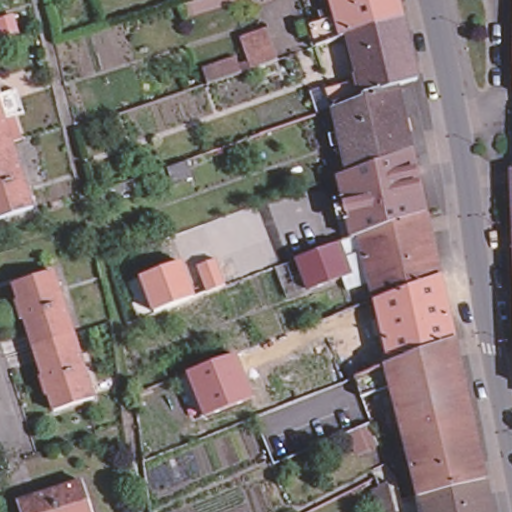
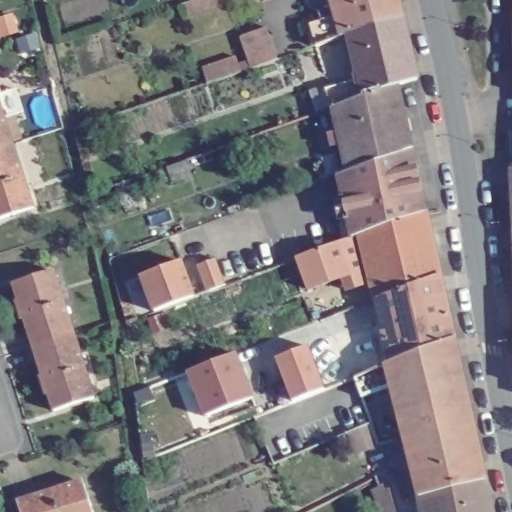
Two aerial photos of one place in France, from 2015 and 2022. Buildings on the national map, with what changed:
unchanged [(289,10),(301,6),(300,0),(395,0),(401,18),(376,27),(349,36),(331,42),(315,47),(312,37),(299,41),(289,10)]
unchanged [(369,205),(366,191),(344,196),(339,177),(328,180),(324,168),(345,161),(336,114),(334,110),(317,115),(309,93),(326,87),(324,85),(359,76),(349,36),(376,27),(401,18),(416,80),(413,82),(397,86),(412,150),(426,212),(441,278),(408,291),(376,303),(359,237),(354,239),(347,211),(369,205)]
unchanged [(276,70),(249,80),(238,47),(266,38),(276,70)]
unchanged [(0,152),(0,105),(14,149),(0,152)]
unchanged [(0,218),(0,152),(14,149),(33,209),(0,218)]
unchanged [(511,171),(512,171),(512,203),(511,171)]
unchanged [(349,269),(346,276),(309,289),(299,259),(341,244),(349,269)]
unchanged [(226,285),(205,291),(196,266),(216,259),(226,285)]
unchanged [(139,277),(182,261),(194,296),(152,312),(139,277)]
unchanged [(15,284),(53,273),(75,341),(36,352),(15,284)]
unchanged [(392,366),(376,303),(408,291),(441,278),(456,341),(392,366)]
unchanged [(75,341),(94,401),(56,413),(36,352),(75,341)]
unchanged [(404,440),(391,388),(361,400),(354,380),(369,374),(386,368),(392,366),(456,341),(459,359),(473,419),(439,429),(404,440)]
new [(308,344),(324,387),(289,398),(274,357),(308,344)]
unchanged [(186,373),(238,353),(253,397),(203,417),(186,373)]
unchanged [(419,500),(404,440),(439,429),(473,419),(486,482),(419,500)]
unchanged [(364,467),(344,474),(338,459),(358,451),(364,467)]
unchanged [(22,512),(19,503),(85,481),(95,512),(22,512)]
unchanged [(486,482),(493,512),(421,512),(419,500),(486,482)]
unchanged [(376,512),(387,509),(388,512),(376,512)]

